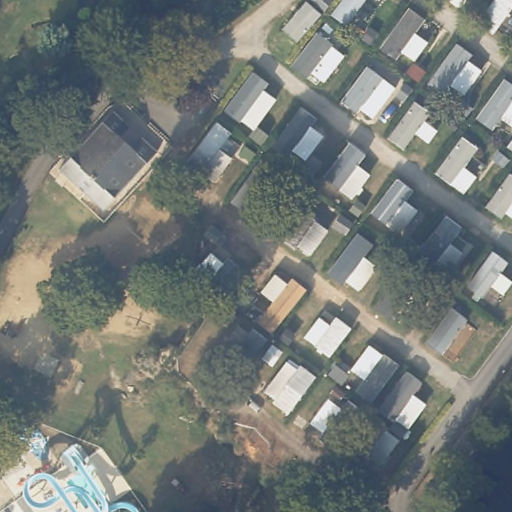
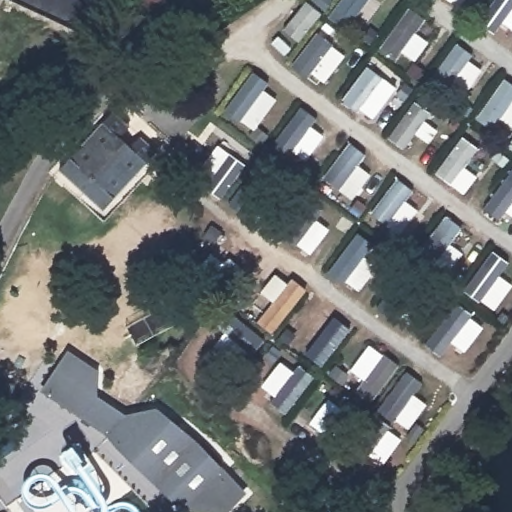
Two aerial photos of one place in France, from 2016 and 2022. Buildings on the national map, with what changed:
unchanged [(118,111),(134,126),(130,130),(125,137),(135,147),(142,140),(145,136),(162,151),(159,155),(108,210),(64,170),(114,115),(118,111)]
new [(96,371),(95,397),(125,416),(156,410),(196,442),(244,493),(225,512),(202,512),(181,507),(121,448),(111,435),(43,390),(69,352),(96,371)]

